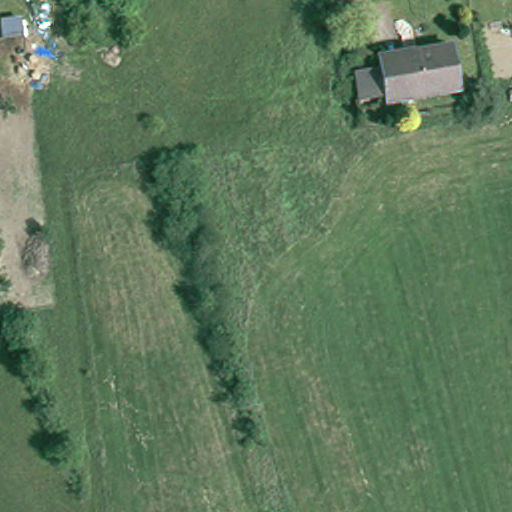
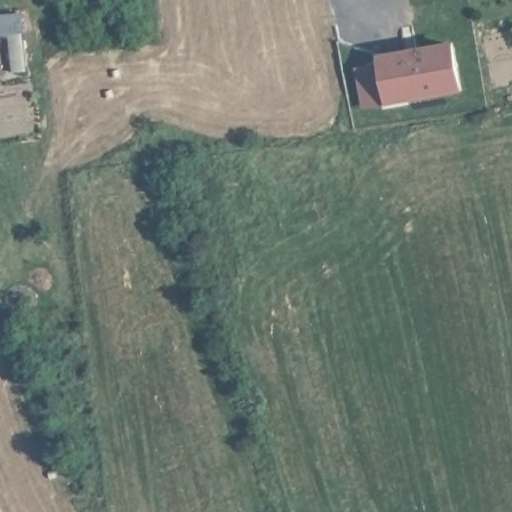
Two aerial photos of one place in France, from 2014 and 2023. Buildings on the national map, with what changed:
unchanged [(362,72),(387,69),(386,64),(421,57),(420,52),(457,45),(464,90),(393,102),(391,96),(367,101),(362,72)]

